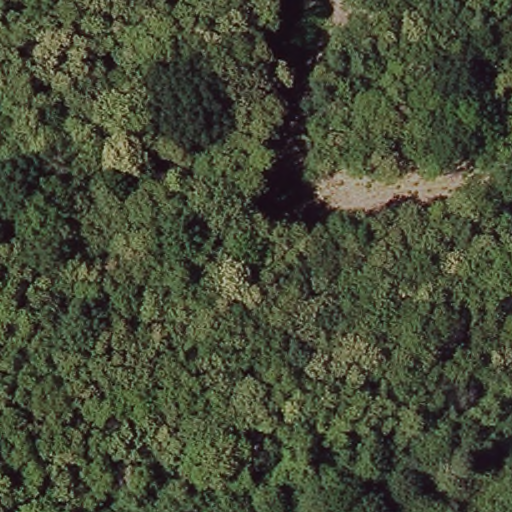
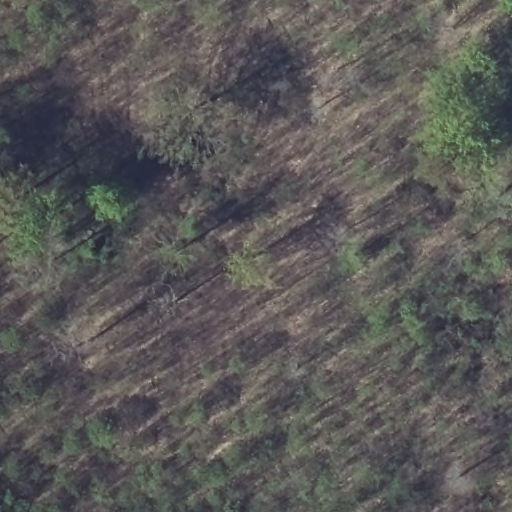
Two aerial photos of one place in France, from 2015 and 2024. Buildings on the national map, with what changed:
[]

